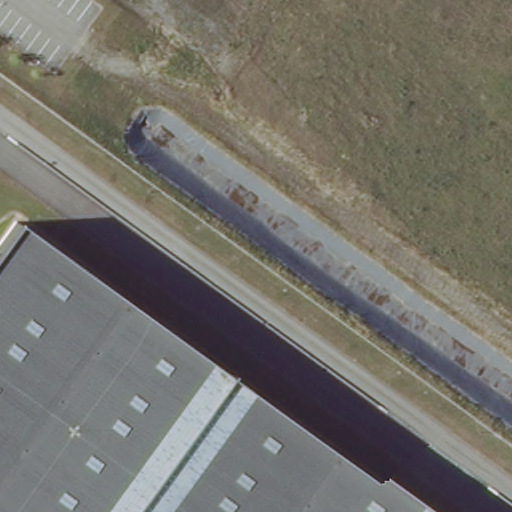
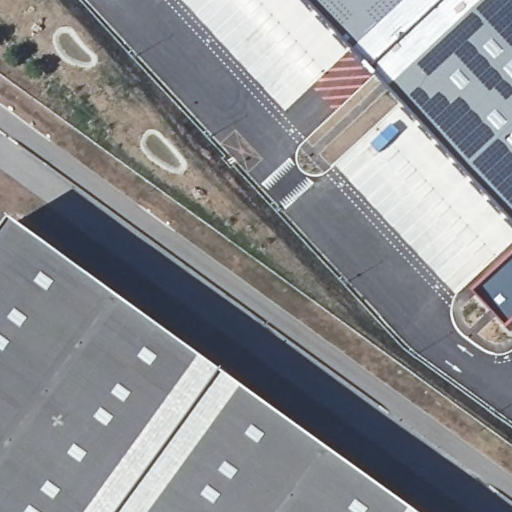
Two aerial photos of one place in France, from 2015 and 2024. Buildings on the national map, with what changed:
new [(350,48),(283,111),(222,47),(180,0),(305,0),(350,48)]
new [(480,180),(381,72),(313,0),(512,0),(512,213),(480,180)]
new [(390,120),(400,130),(413,118),(444,149),(512,223),(512,234),(486,262),(454,293),(385,220),(390,216),(393,219),(398,217),(400,220),(404,217),(409,221),(417,215),(421,219),(425,217),(425,218),(431,222),(443,219),(442,210),(445,207),(414,175),(397,161),(401,157),(390,146),(378,154),(366,142),(390,120)]
unchanged [(412,512),(0,512),(0,237),(11,222),(412,512)]
new [(512,261),(512,328),(510,330),(478,292),(512,261)]

